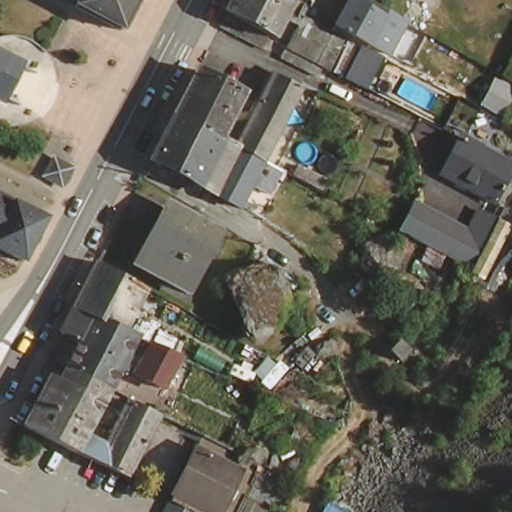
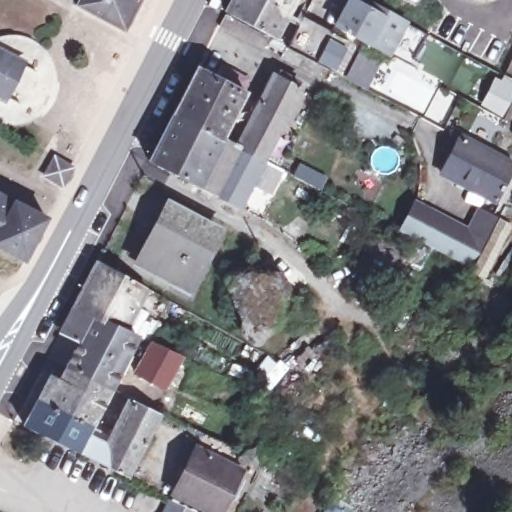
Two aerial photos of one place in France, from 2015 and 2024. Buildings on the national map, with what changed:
unchanged [(74,6),(77,0),(137,0),(120,31),(74,6)]
unchanged [(278,0),(286,4),(270,33),(265,30),(259,40),(254,38),(216,18),(221,8),(226,0),(278,0)]
unchanged [(278,0),(288,0),(286,4),(278,0)]
unchanged [(395,50),(341,21),(352,0),(379,0),(412,16),(395,50)]
unchanged [(329,77),(322,74),(318,71),(302,64),(289,56),(294,46),(309,19),(311,17),(336,30),(386,55),(370,85),(340,70),(334,80),(329,77)]
unchanged [(0,94),(0,53),(19,64),(3,96),(0,94)]
unchanged [(179,95),(191,72),(241,98),(230,120),(179,95)]
unchanged [(234,151),(238,144),(273,79),(299,93),(261,165),(234,151)]
unchanged [(179,95),(230,120),(221,136),(231,141),(238,144),(234,151),(168,119),(179,95)]
unchanged [(168,119),(234,151),(261,165),(236,210),(146,161),(168,119)]
unchanged [(453,133),(509,160),(512,162),(512,178),(497,206),(433,172),(453,133)]
unchanged [(60,164),(49,183),(47,182),(28,172),(38,151),(58,162),(60,164)]
unchanged [(307,188),(279,174),(283,166),(311,180),(307,188)]
unchanged [(0,253),(0,194),(42,216),(18,263),(0,253)]
unchanged [(412,234),(423,216),(429,206),(478,232),(489,212),(509,223),(483,270),(412,234)]
unchanged [(164,209),(216,236),(193,284),(140,257),(164,209)]
unchanged [(119,330),(69,306),(93,257),(143,283),(119,330)]
unchanged [(262,286),(274,344),(231,353),(208,294),(262,286)]
unchanged [(107,390),(65,370),(63,368),(79,336),(59,325),(69,306),(119,330),(133,337),(107,390)]
unchanged [(388,340),(398,352),(384,363),(374,352),(388,340)]
unchanged [(136,372),(131,370),(145,343),(178,359),(165,387),(175,393),(163,418),(143,408),(128,400),(122,398),(136,372)]
unchanged [(55,365),(63,368),(65,370),(107,390),(85,436),(105,446),(128,400),(143,408),(163,418),(168,420),(135,485),(88,462),(23,429),(55,365)]
unchanged [(219,512),(212,512),(176,494),(196,450),(238,471),(219,512)]
unchanged [(176,504),(193,512),(172,512),(176,504)]

